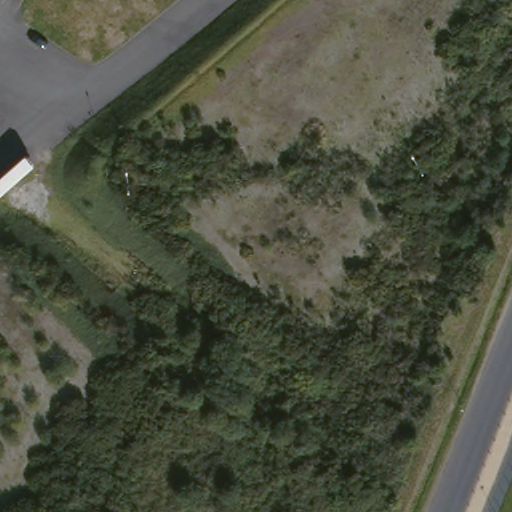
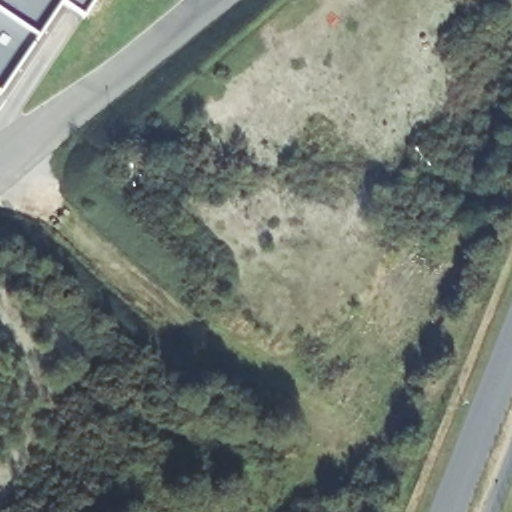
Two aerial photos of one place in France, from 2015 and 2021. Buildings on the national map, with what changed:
new [(84,18),(62,3),(0,93),(0,0),(96,0),(84,18)]

